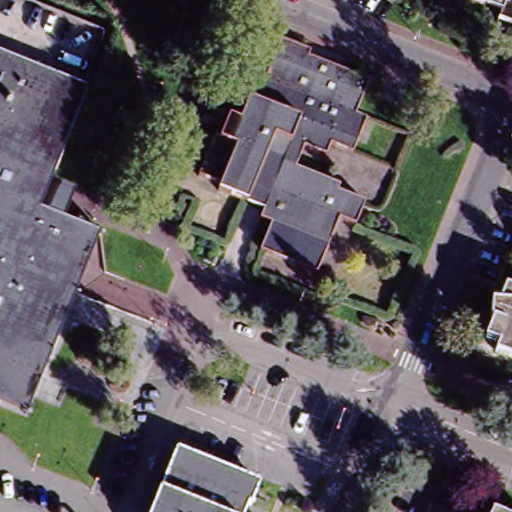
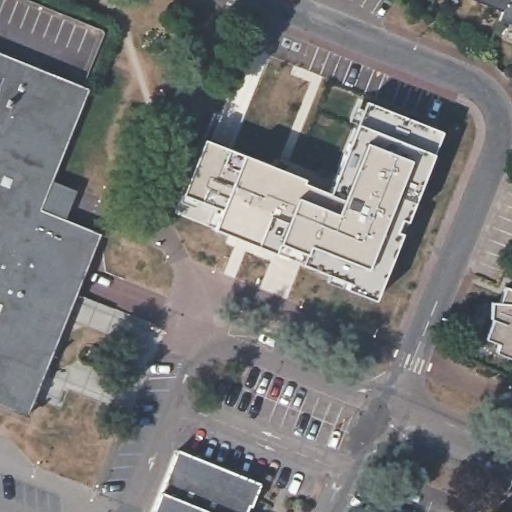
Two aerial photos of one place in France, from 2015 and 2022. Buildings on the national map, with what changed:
unchanged [(498,24),(502,14),(470,0),(512,0),(512,29),(498,24)]
demolished [(366,87),(352,119),(364,123),(350,157),(327,148),(323,160),(300,151),(292,171),(336,189),(334,196),(362,206),(352,231),(335,224),(315,269),(259,246),(267,227),(254,222),(257,215),(256,214),(262,201),(260,200),(247,194),(241,208),(214,197),(217,189),(193,179),(208,140),(213,142),(222,121),(235,127),(244,102),(251,106),(276,44),(307,57),(304,61),(301,69),(309,72),(312,73),(315,66),(366,87)]
unchanged [(0,59),(82,92),(91,96),(81,119),(53,185),(51,191),(40,217),(88,237),(102,243),(23,426),(0,416),(0,59)]
new [(346,287),(349,279),(302,262),(306,252),(280,241),(275,250),(215,227),(222,210),(184,194),(206,139),(245,155),(305,179),(304,182),(329,192),(357,124),(367,101),(442,132),(432,153),(407,220),(401,217),(396,229),(402,232),(374,297),(346,287)]
unchanged [(496,352),(498,343),(485,338),(492,321),(488,302),(495,302),(501,286),(512,290),(512,358),(496,352)]
unchanged [(241,512),(146,512),(168,459),(172,451),(178,448),(252,480),(255,486),(247,505),(245,503),(241,512)]
unchanged [(501,512),(492,512),(494,509),(501,512)]

